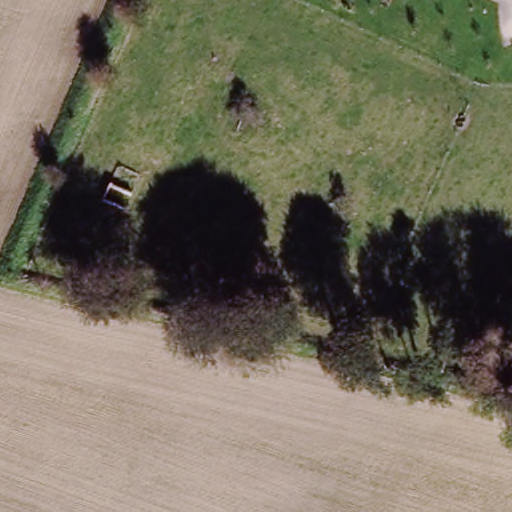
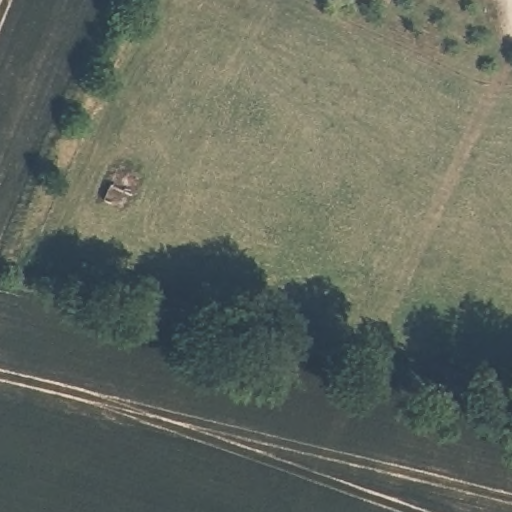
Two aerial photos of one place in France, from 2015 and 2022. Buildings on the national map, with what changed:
unchanged [(119,223),(102,216),(108,202),(99,199),(117,161),(146,175),(119,223)]

